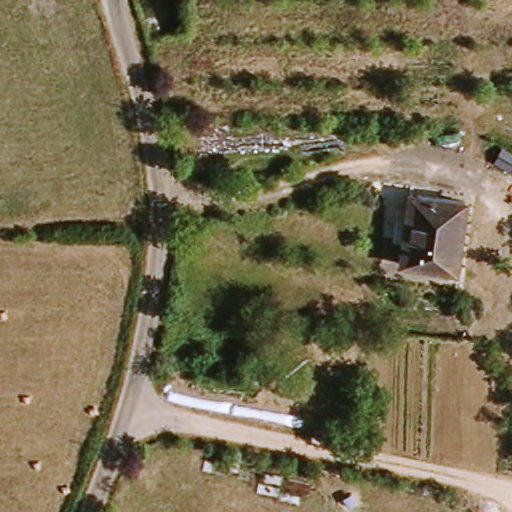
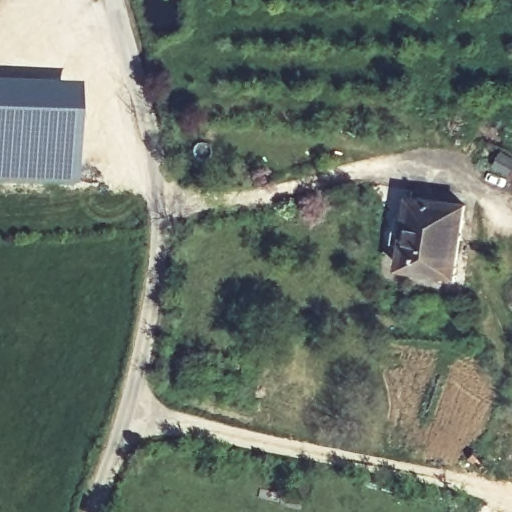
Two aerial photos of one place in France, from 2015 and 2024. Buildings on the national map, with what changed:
new [(64,192),(0,189),(0,93),(70,95),(64,192)]
unchanged [(407,202),(457,206),(452,274),(402,270),(407,202)]

